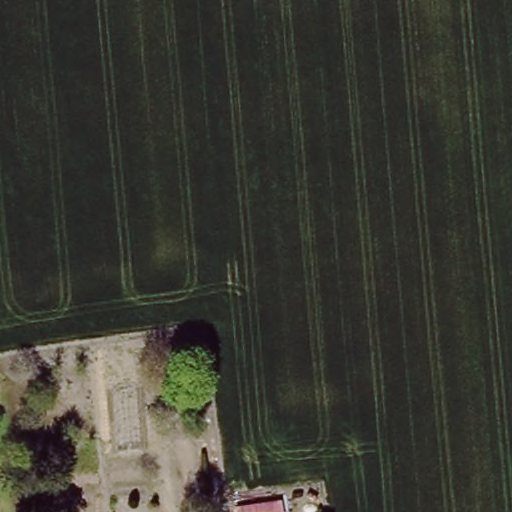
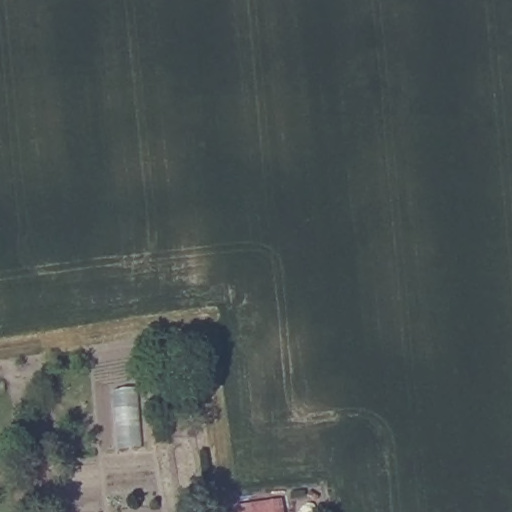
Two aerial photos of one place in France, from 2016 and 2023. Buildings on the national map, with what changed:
unchanged [(283,512),(241,512),(238,503),(280,496),(283,512)]

